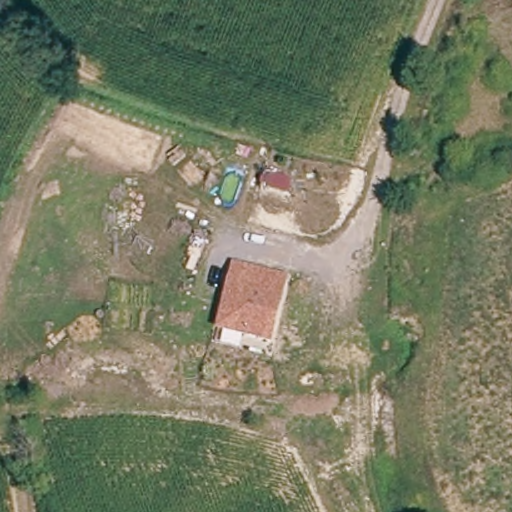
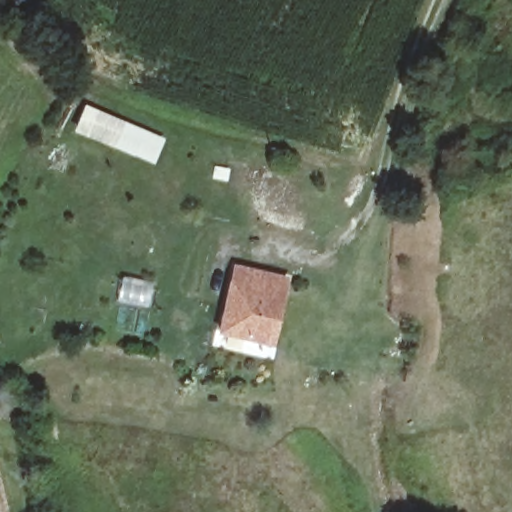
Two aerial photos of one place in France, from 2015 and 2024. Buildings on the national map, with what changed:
new [(74,130),(85,104),(165,137),(154,163),(74,130)]
unchanged [(272,343),(217,331),(230,263),(287,278),(272,343)]

